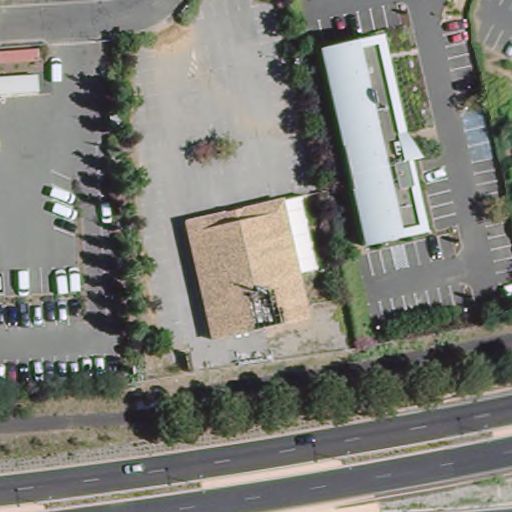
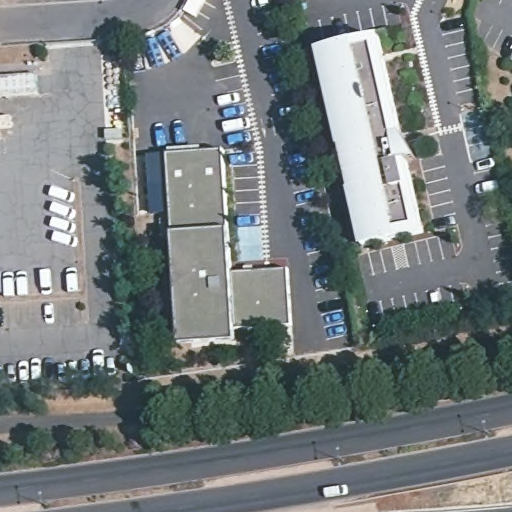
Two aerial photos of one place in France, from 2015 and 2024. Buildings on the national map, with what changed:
unchanged [(314,50),(374,35),(422,229),(363,244),(314,50)]
unchanged [(40,92),(0,94),(0,77),(38,74),(40,92)]
new [(180,341),(179,329),(169,329),(166,272),(176,272),(171,154),(219,152),(226,271),(284,268),(286,322),(236,324),(236,338),(195,340),(180,341)]
demolished [(289,267),(296,265),(306,311),(214,332),(204,286),(211,284),(197,223),(228,216),(226,205),(242,201),(244,212),(275,205),(289,267)]

